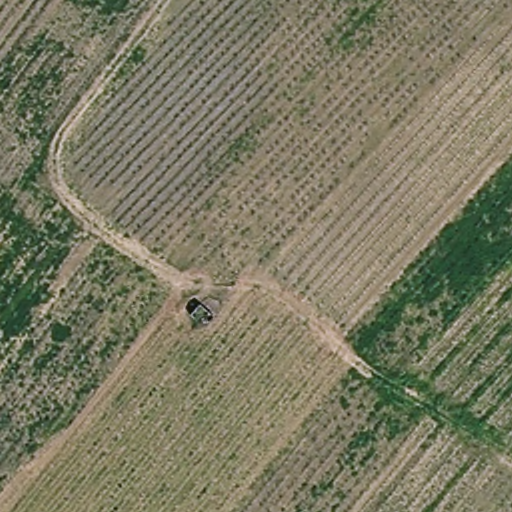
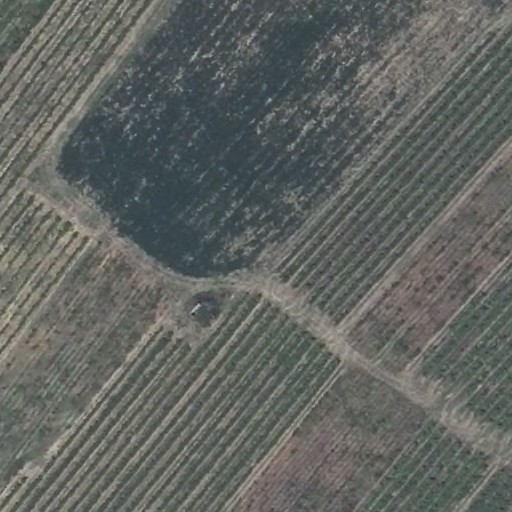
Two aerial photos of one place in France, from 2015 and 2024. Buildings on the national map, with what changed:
unchanged [(201,304),(216,318),(208,328),(191,314),(201,304)]

